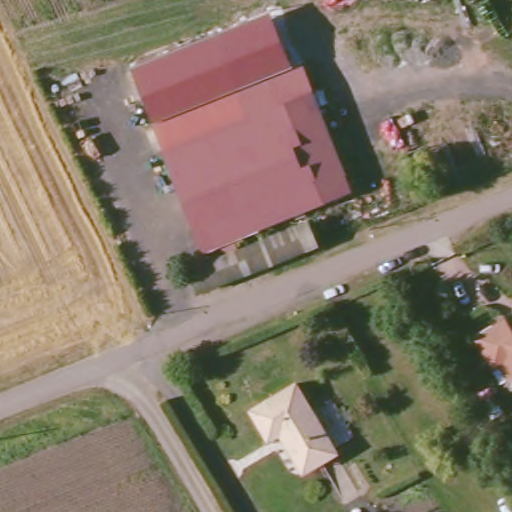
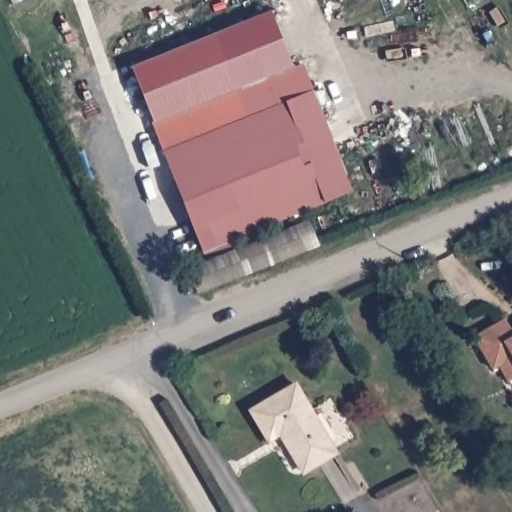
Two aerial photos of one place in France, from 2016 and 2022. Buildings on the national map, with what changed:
unchanged [(134,66),(271,11),(297,76),(160,129),(134,66)]
unchanged [(347,178),(357,201),(230,251),(233,261),(215,268),(170,155),(160,129),(305,72),(315,97),(347,178)]
unchanged [(233,261),(314,229),(322,250),(204,297),(195,276),(215,268),(233,261)]
unchanged [(510,318),(512,320),(512,364),(499,371),(479,335),(510,318)]
unchanged [(300,385),(337,452),(310,467),(290,432),(272,441),(255,410),(300,385)]

